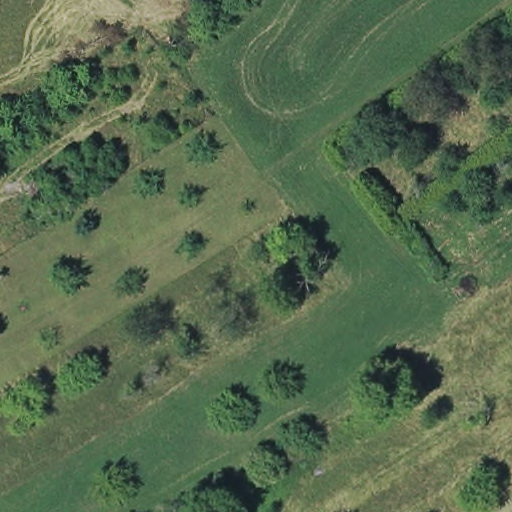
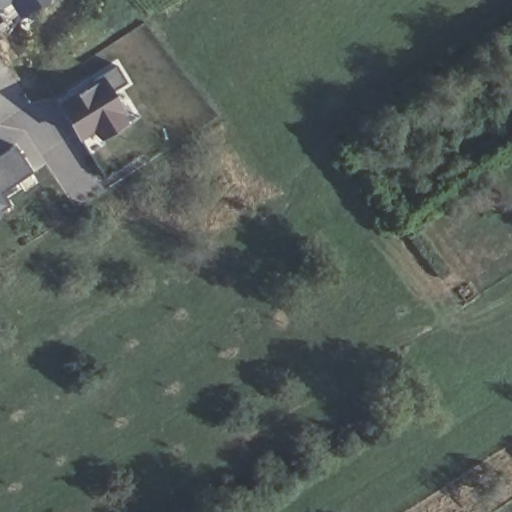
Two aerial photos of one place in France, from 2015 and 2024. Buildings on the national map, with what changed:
new [(21,24),(9,8),(0,15),(0,0),(55,0),(21,24)]
new [(111,92),(122,111),(118,114),(123,123),(102,137),(95,127),(78,137),(61,105),(78,94),(93,84),(91,80),(117,65),(126,82),(111,92)]
new [(33,174),(2,197),(9,211),(0,217),(0,159),(18,147),(33,174)]

